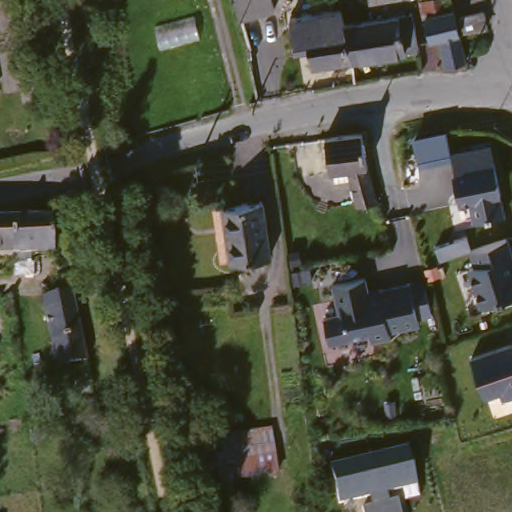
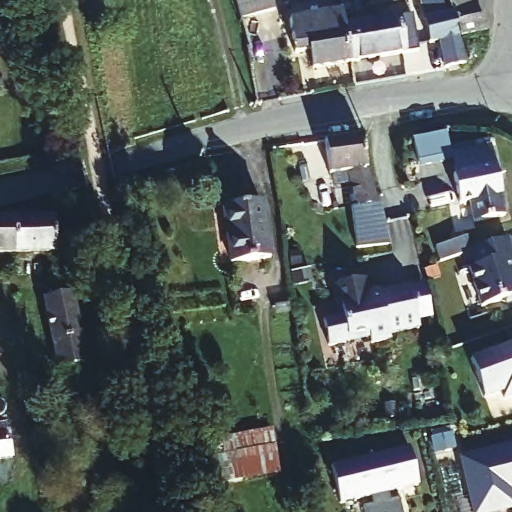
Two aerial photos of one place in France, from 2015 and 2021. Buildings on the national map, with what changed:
unchanged [(240,23),(233,0),(270,0),(273,11),(240,23)]
unchanged [(368,0),(412,0),(369,7),(368,0)]
unchanged [(438,42),(428,44),(422,19),(420,4),(441,0),(443,15),(452,13),(458,37),(459,41),(459,42),(464,64),(444,68),(438,42)]
unchanged [(311,69),(308,51),(293,54),(288,20),(340,12),(342,27),(345,27),(351,63),(311,69)]
unchanged [(482,15),(485,31),(458,37),(457,21),(482,15)]
unchanged [(345,27),(411,17),(416,53),(351,63),(345,27)]
unchanged [(377,170),(386,204),(366,208),(357,172),(339,176),(332,143),(370,136),(377,170)]
unchanged [(487,147),(495,195),(494,196),(497,216),(467,222),(463,201),(452,203),(448,174),(450,174),(447,154),(487,147)]
unchanged [(230,264),(222,209),(261,203),(270,258),(230,264)]
unchanged [(54,219),(56,254),(14,255),(13,220),(54,219)]
unchanged [(0,256),(0,220),(13,220),(14,255),(0,256)]
unchanged [(505,244),(510,262),(506,263),(512,285),(512,307),(503,310),(498,307),(497,306),(478,312),(467,273),(473,271),(468,255),(505,244)]
unchanged [(417,323),(387,329),(388,335),(369,338),(367,329),(347,333),(347,336),(327,341),(321,315),(341,311),(339,303),(336,304),(331,281),(362,274),(367,293),(377,291),(377,287),(408,280),(417,323)]
unchanged [(77,397),(72,370),(57,373),(43,304),(72,298),(87,367),(92,394),(77,397)]
unchanged [(498,400),(497,393),(482,398),(467,356),(512,341),(512,396),(498,400)]
unchanged [(232,447),(217,450),(215,434),(266,425),(273,468),(237,474),(232,447)]
unchanged [(373,505),(371,495),(341,503),(331,465),(409,446),(418,485),(389,492),(392,501),(400,499),(403,512),(364,512),(363,508),(373,505)]
new [(510,492),(512,500),(512,510),(502,512),(472,512),(460,461),(512,449),(512,492),(510,492)]

